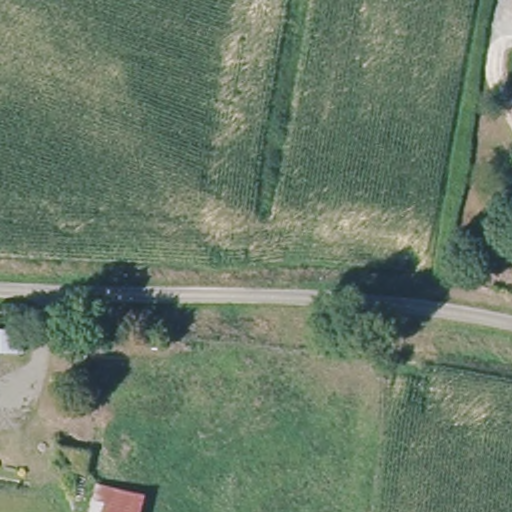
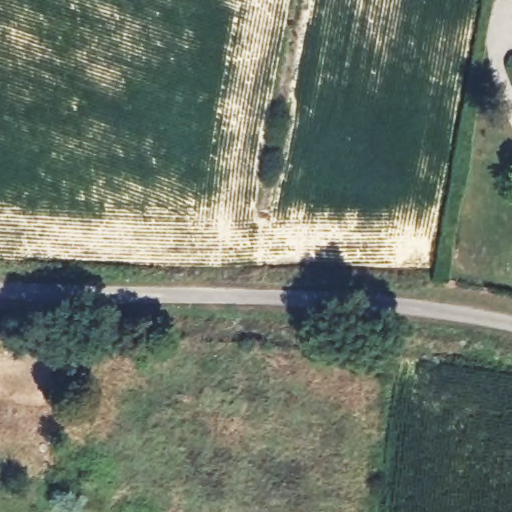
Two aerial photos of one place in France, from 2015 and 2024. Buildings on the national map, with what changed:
demolished [(86,512),(93,484),(144,494),(140,512),(86,512)]

